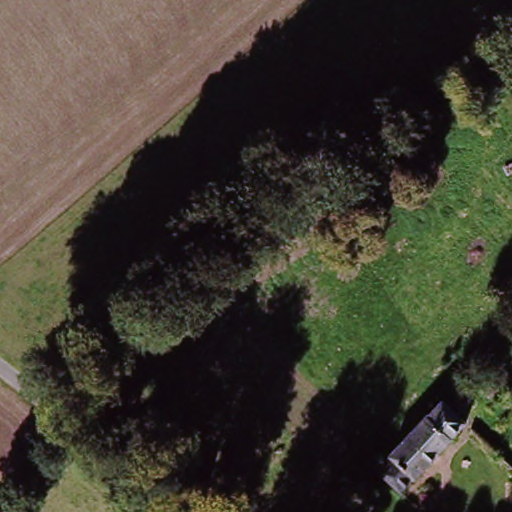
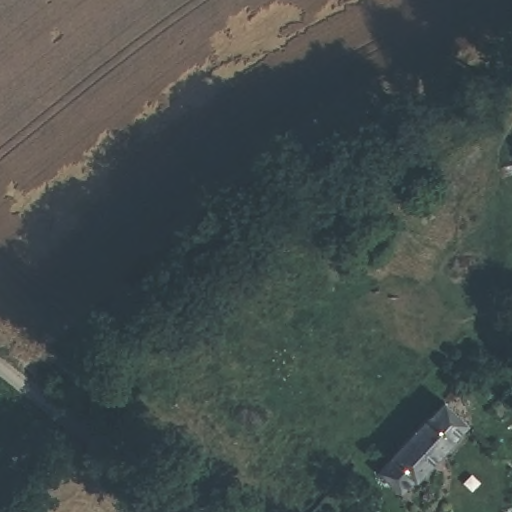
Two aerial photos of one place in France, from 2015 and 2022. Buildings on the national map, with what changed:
unchanged [(408,207),(387,224),(372,205),(394,188),(408,207)]
unchanged [(468,424),(404,495),(377,472),(439,400),(468,424)]

